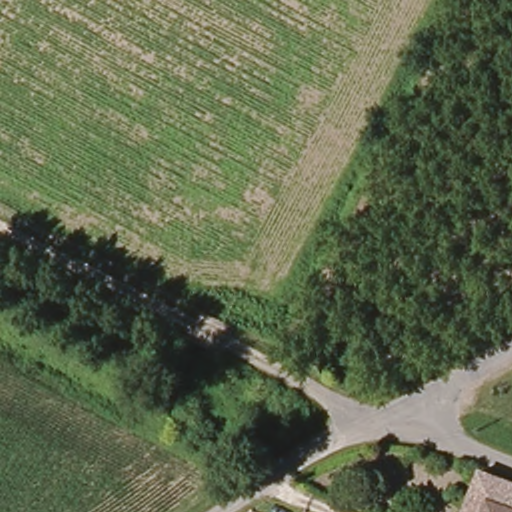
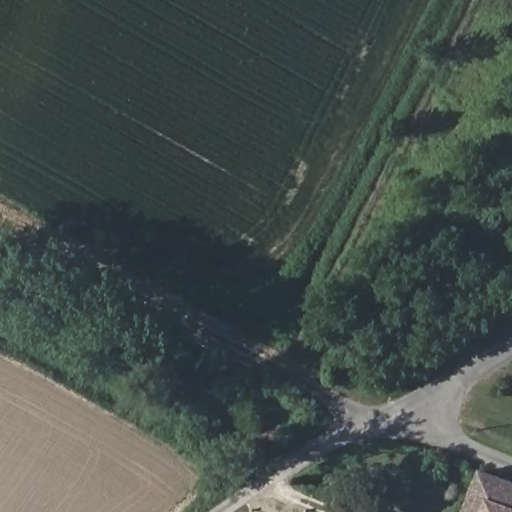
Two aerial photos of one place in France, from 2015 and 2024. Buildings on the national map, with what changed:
unchanged [(481,475),(512,486),(512,512),(467,512),(481,475)]

